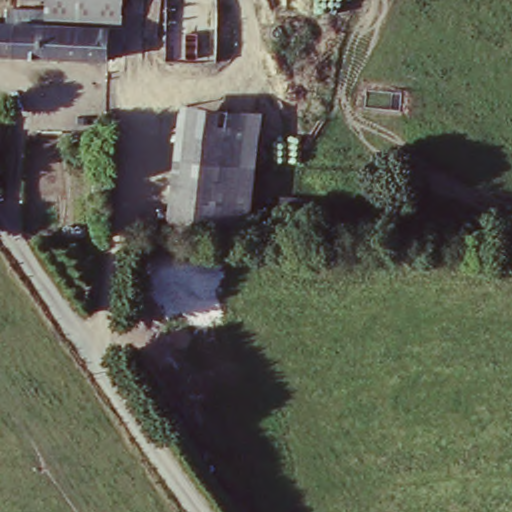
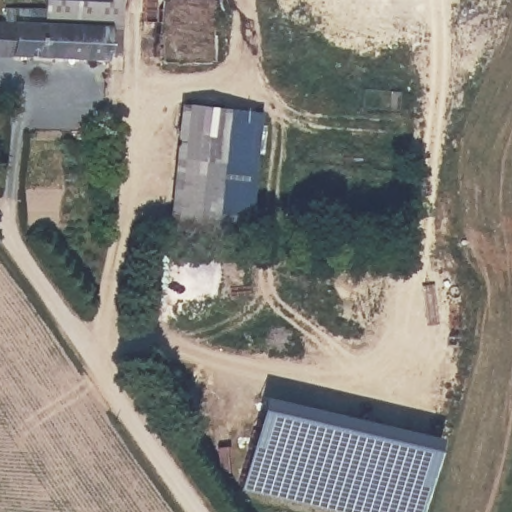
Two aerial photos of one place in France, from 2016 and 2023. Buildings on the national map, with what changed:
unchanged [(41,21),(42,7),(42,0),(119,0),(118,24),(41,21)]
unchanged [(2,5),(42,7),(41,21),(118,24),(117,53),(103,53),(103,58),(0,55),(0,20),(2,20),(2,5)]
unchanged [(255,111),(242,236),(169,227),(182,104),(255,111)]
new [(437,439),(420,512),(334,512),(239,490),(260,398),(437,439)]

